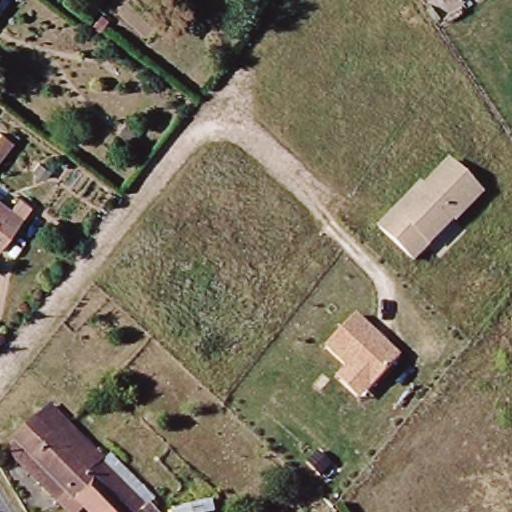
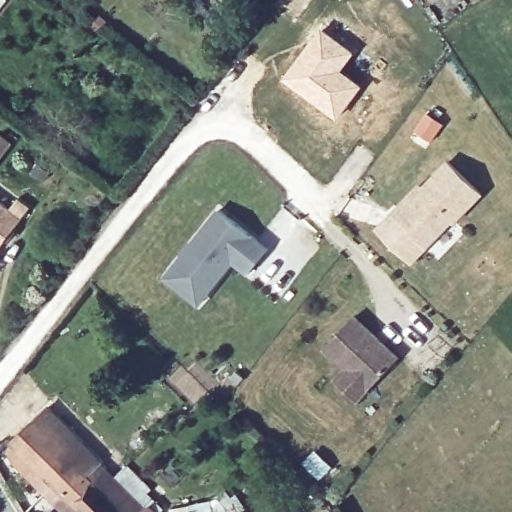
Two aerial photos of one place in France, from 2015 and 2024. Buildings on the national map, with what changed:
unchanged [(0,0),(7,0),(0,9),(0,0)]
unchanged [(444,0),(447,0),(445,1),(444,0)]
new [(321,26),(356,52),(343,70),(364,85),(337,120),(282,77),(321,26)]
unchanged [(0,138),(5,131),(18,140),(0,165),(0,138)]
unchanged [(480,196),(455,223),(452,221),(411,263),(377,231),(392,215),(417,189),(421,191),(447,165),(480,196)]
unchanged [(6,252),(0,248),(0,198),(30,220),(6,252)]
new [(250,275),(234,263),(200,305),(164,277),(182,252),(180,250),(190,240),(192,241),(218,208),(270,247),(250,275)]
unchanged [(336,378),(347,367),(327,347),(357,316),(401,357),(359,401),(336,378)]
unchanged [(57,400),(110,450),(105,455),(153,503),(146,510),(149,512),(90,512),(17,443),(57,400)]

